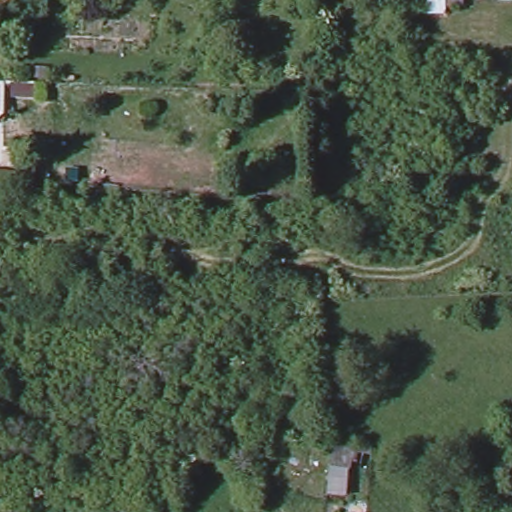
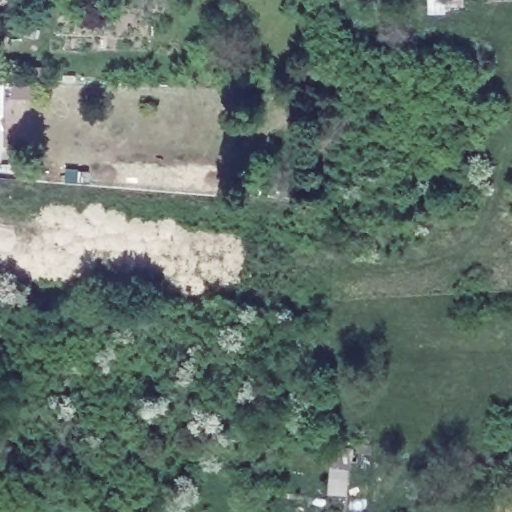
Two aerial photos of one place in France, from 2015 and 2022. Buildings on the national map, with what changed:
unchanged [(5,116),(0,116),(0,83),(5,84),(5,116)]
unchanged [(0,121),(0,116),(5,116),(5,118),(0,121)]

